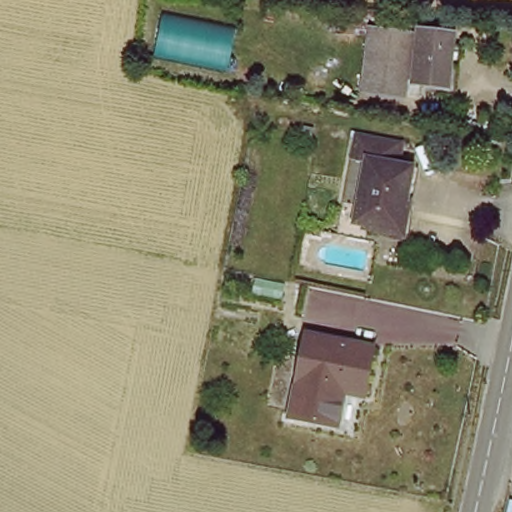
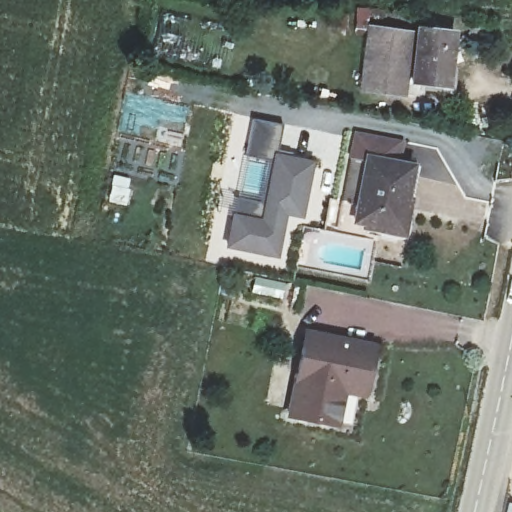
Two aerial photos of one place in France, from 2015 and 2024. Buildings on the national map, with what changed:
demolished [(232,72),(159,58),(165,19),(239,28),(232,72)]
unchanged [(411,33),(412,24),(457,28),(451,90),(405,85),(403,99),(359,94),(367,28),(411,33)]
new [(252,118),(283,125),(278,151),(273,150),(271,160),(245,155),(252,118)]
unchanged [(365,155),(349,152),(353,131),(399,140),(394,161),(417,166),(403,234),(352,223),(365,155)]
new [(233,197),(261,201),(271,160),(273,150),(278,151),(316,160),(301,219),(287,216),(279,258),(224,248),(233,197)]
new [(254,275),(287,283),(283,299),(250,292),(254,275)]
unchanged [(309,332),(376,347),(365,396),(344,391),(336,428),(288,417),(309,332)]

